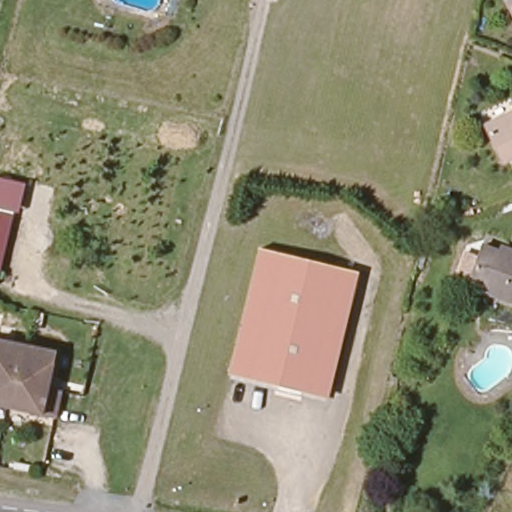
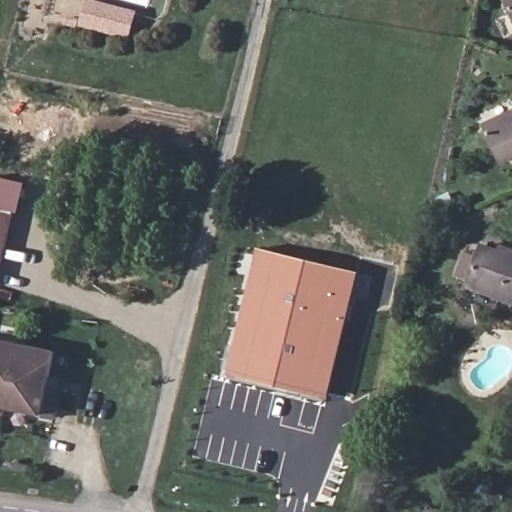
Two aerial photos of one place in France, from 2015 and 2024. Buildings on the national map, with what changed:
new [(93,0),(137,11),(134,26),(130,25),(128,33),(132,34),(131,41),(65,24),(67,16),(82,20),(87,0),(93,0)]
unchanged [(512,8),(511,5),(512,4),(512,8)]
unchanged [(488,129),(512,118),(512,164),(506,166),(488,129)]
unchanged [(455,207),(442,212),(436,199),(448,193),(455,207)]
unchanged [(13,210),(0,266),(0,207),(13,210)]
unchanged [(256,249),(355,273),(325,394),(227,370),(256,249)]
unchanged [(471,291),(485,251),(512,260),(512,259),(512,306),(503,303),(471,291)]
unchanged [(59,359),(51,394),(65,397),(60,422),(0,409),(0,346),(59,359)]

